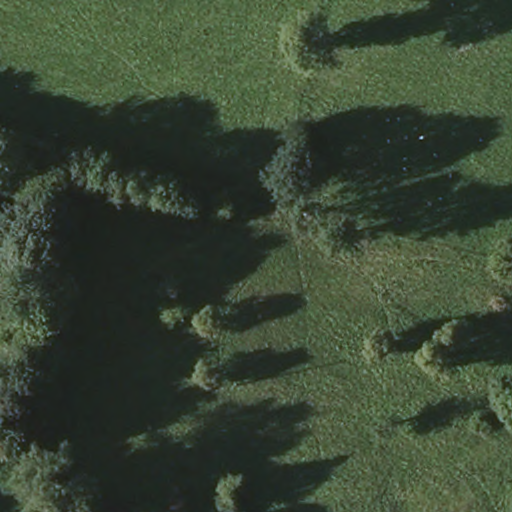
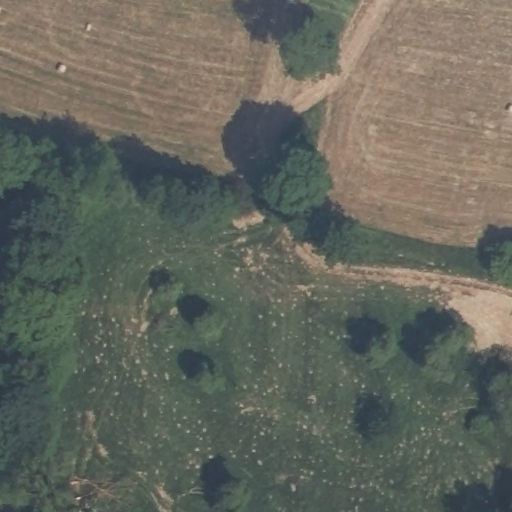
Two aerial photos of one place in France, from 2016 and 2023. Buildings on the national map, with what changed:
[]

